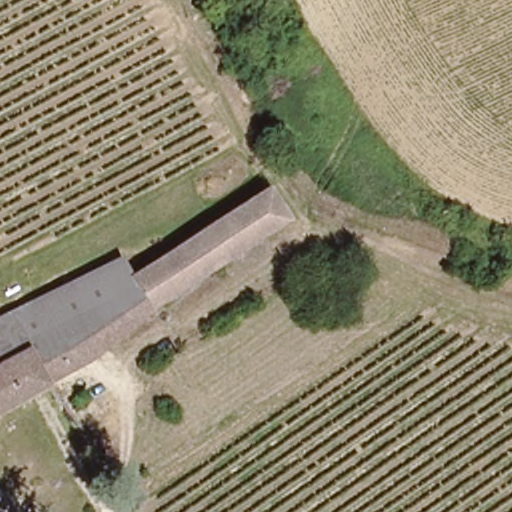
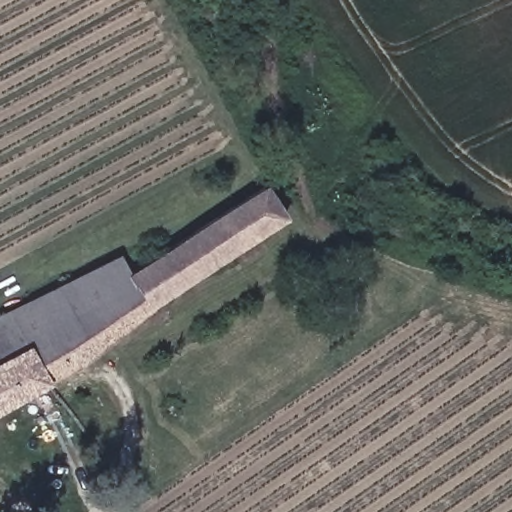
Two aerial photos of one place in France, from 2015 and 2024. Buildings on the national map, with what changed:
unchanged [(98,354),(95,364),(81,369),(0,419),(0,320),(116,251),(125,266),(264,188),(282,217),(150,298),(98,354)]

